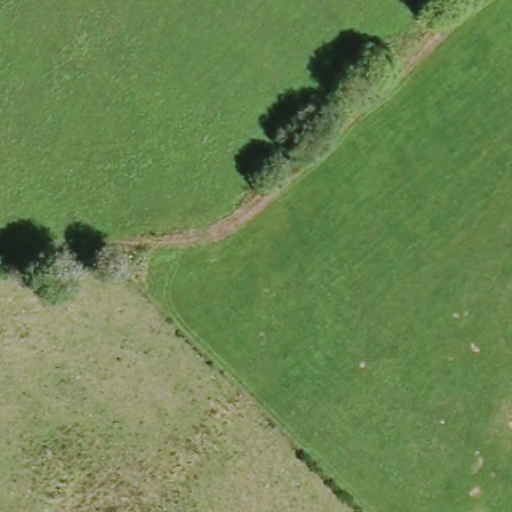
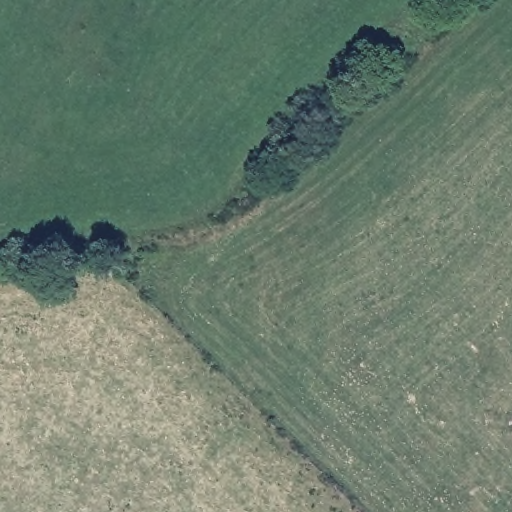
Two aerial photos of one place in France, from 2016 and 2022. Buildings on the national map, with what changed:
[]

